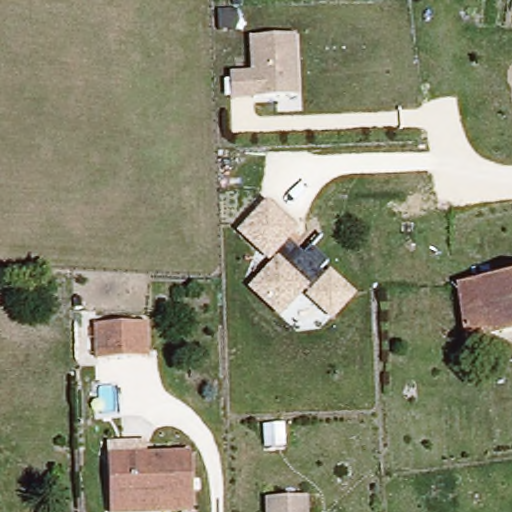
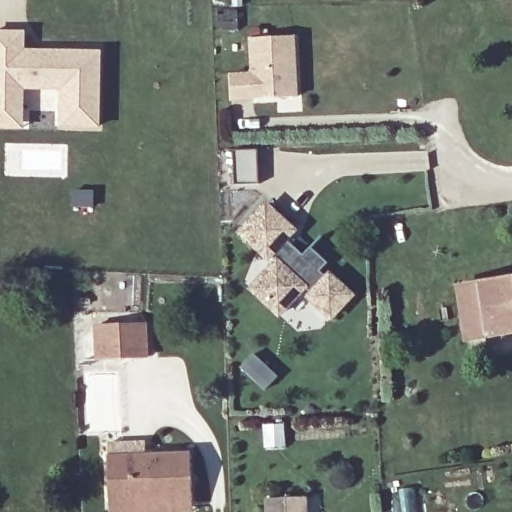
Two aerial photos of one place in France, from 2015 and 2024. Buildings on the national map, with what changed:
new [(0,125),(0,32),(23,32),(23,50),(99,52),(97,125),(61,125),(62,87),(21,86),(20,110),(20,126),(0,125)]
unchanged [(233,76),(255,75),(254,40),(298,39),(301,100),(257,101),(235,102),(233,76)]
unchanged [(296,230),(287,240),(305,255),(312,247),(328,262),(320,271),(327,277),(330,275),(353,293),(331,319),(309,298),(314,292),(307,285),(282,313),(253,286),(274,265),(239,230),(267,202),(296,230)]
unchanged [(512,332),(464,338),(457,287),(512,279),(512,332)]
unchanged [(142,321),(144,357),(94,359),(92,323),(142,321)]
new [(263,390),(253,382),(239,369),(251,355),(265,368),(275,377),(263,390)]
unchanged [(189,458),(192,507),(108,511),(105,462),(189,458)]
unchanged [(308,512),(270,512),(269,502),(307,500),(308,512)]

